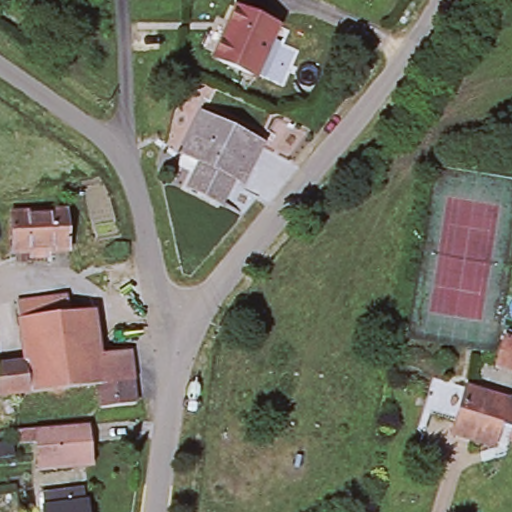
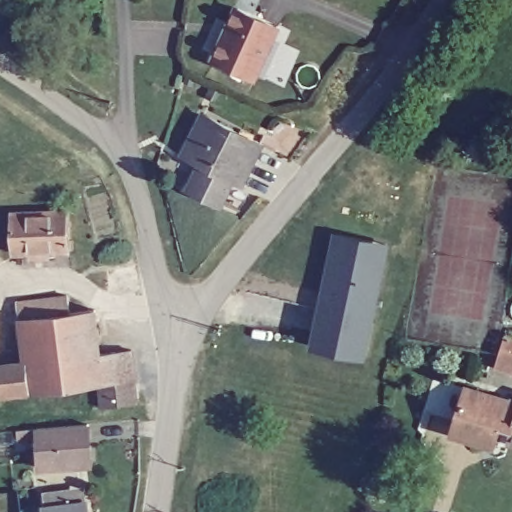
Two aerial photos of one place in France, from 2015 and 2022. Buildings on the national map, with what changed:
unchanged [(257,73),(217,55),(240,5),(280,24),(257,73)]
unchanged [(237,175),(228,171),(215,197),(183,181),(197,154),(179,146),(198,108),(257,138),(237,175)]
unchanged [(16,261),(16,251),(11,251),(10,211),(66,209),(67,249),(21,250),(21,261),(16,261)]
new [(390,244),(366,359),(308,348),(332,230),(390,244)]
unchanged [(0,394),(0,364),(25,360),(19,317),(18,313),(17,300),(65,294),(67,307),(67,310),(92,307),(98,353),(129,349),(132,377),(101,381),(0,394)]
unchanged [(460,413),(457,412),(428,402),(439,371),(466,380),(471,382),(500,390),(487,434),(456,425),(460,413)]
unchanged [(101,404),(99,383),(134,379),(136,401),(101,404)]
unchanged [(499,438),(487,434),(500,390),(512,394),(512,432),(502,429),(499,438)]
unchanged [(90,461),(69,463),(40,465),(40,459),(39,442),(37,426),(86,421),(88,437),(88,442),(90,455),(90,461)]
unchanged [(50,505),(47,490),(71,487),(87,485),(90,501),(91,501),(92,512),(50,512),(50,505)]

